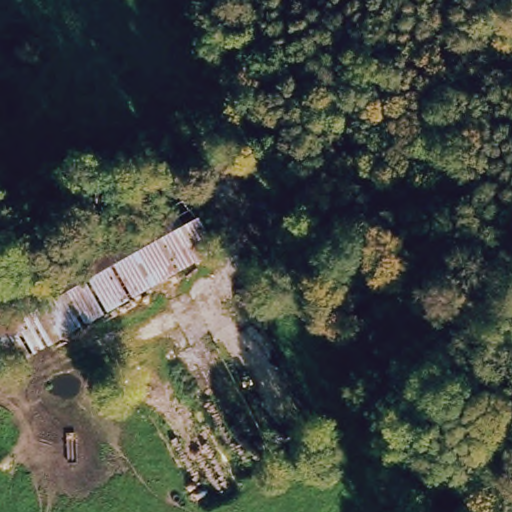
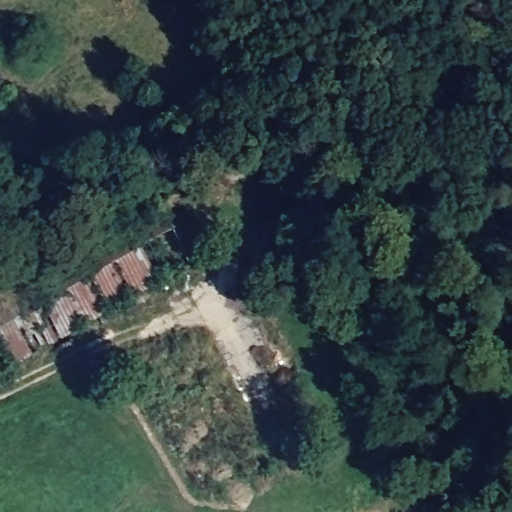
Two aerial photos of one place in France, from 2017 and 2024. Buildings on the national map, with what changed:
unchanged [(0,375),(0,303),(185,198),(211,255),(0,375)]

